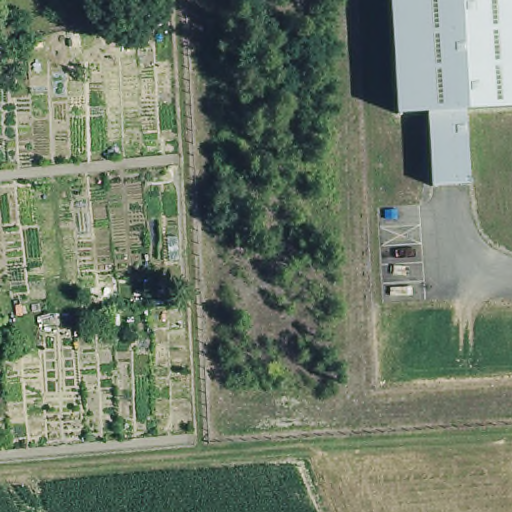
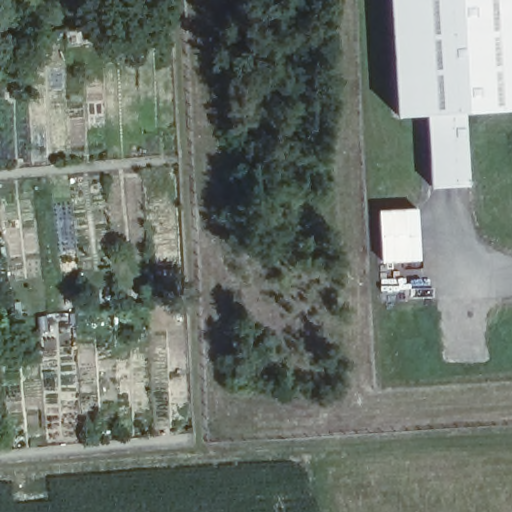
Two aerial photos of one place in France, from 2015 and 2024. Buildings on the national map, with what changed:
unchanged [(466,111),(469,185),(431,187),(425,113),(396,115),(389,0),(512,0),(512,107),(466,111)]
new [(417,206),(421,260),(380,262),(377,208),(417,206)]

